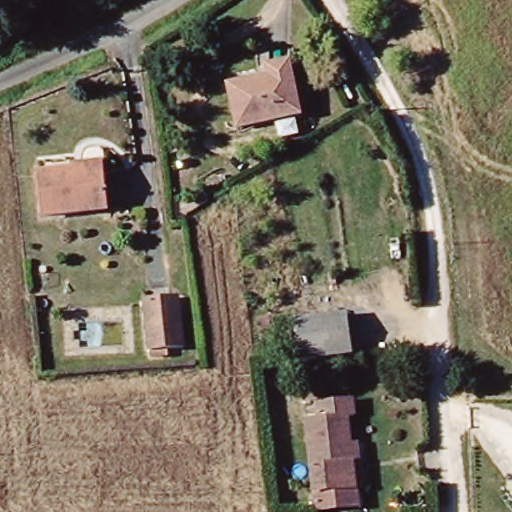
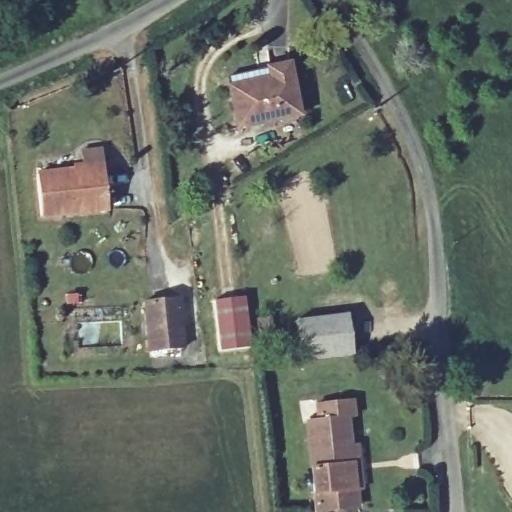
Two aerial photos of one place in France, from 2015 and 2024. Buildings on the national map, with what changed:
unchanged [(226,97),(267,82),(263,71),(285,65),(301,112),(240,133),(226,97)]
unchanged [(39,214),(36,167),(66,168),(66,163),(97,162),(97,174),(99,211),(39,214)]
new [(214,300),(246,296),(252,346),(220,350),(214,300)]
unchanged [(146,345),(143,301),(172,297),(178,343),(146,345)]
unchanged [(296,322),(347,316),(351,357),(302,363),(296,322)]
unchanged [(355,411),(356,443),(360,483),(322,487),(316,416),(325,416),(324,401),(358,398),(359,411),(355,411)]

